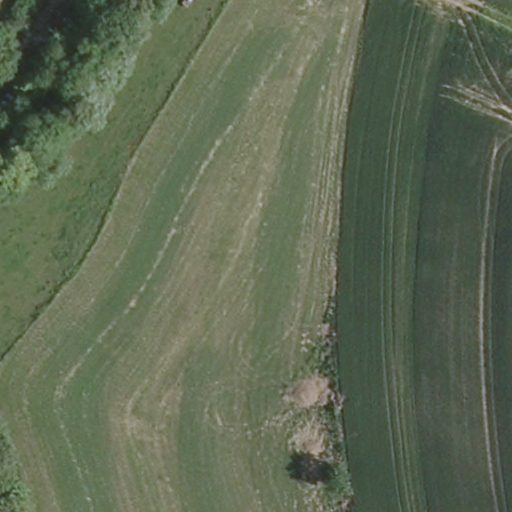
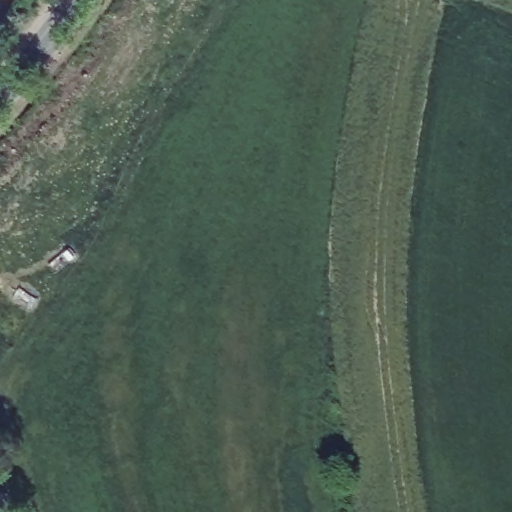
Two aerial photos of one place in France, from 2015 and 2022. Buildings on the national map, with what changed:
[]

